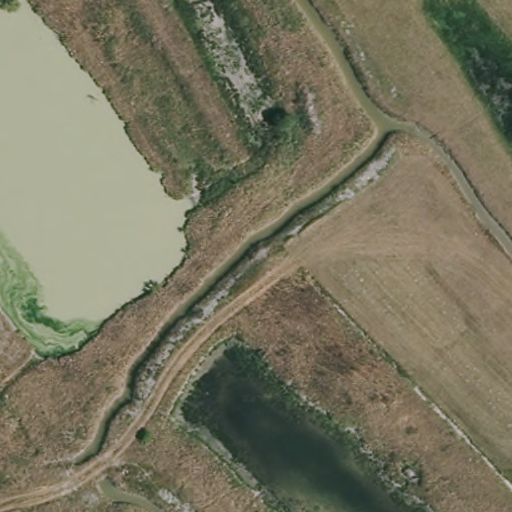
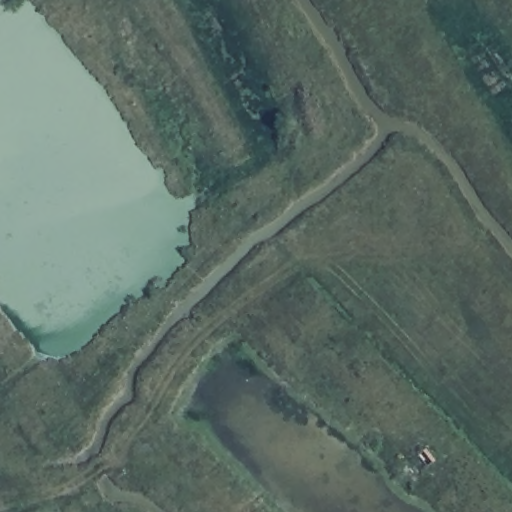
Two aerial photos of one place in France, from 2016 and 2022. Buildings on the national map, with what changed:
[]

